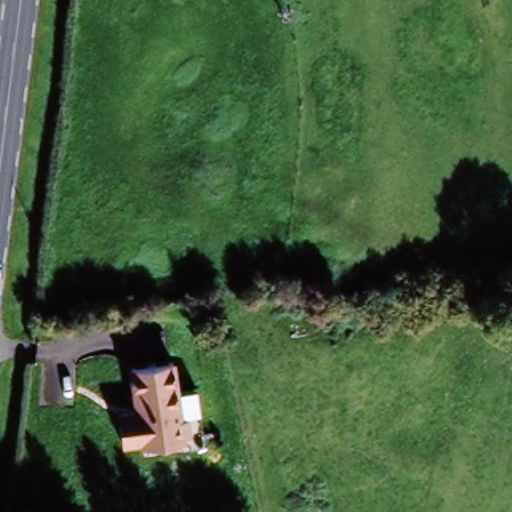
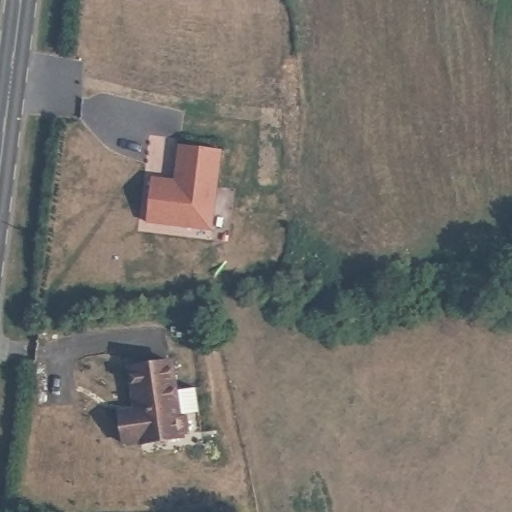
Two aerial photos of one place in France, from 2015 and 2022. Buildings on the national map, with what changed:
new [(222,151),(212,231),(145,223),(150,178),(174,181),(178,146),(222,151)]
unchanged [(129,412),(122,369),(165,362),(169,392),(189,389),(195,433),(174,437),(175,441),(133,449),(130,442),(113,446),(109,415),(129,412)]

